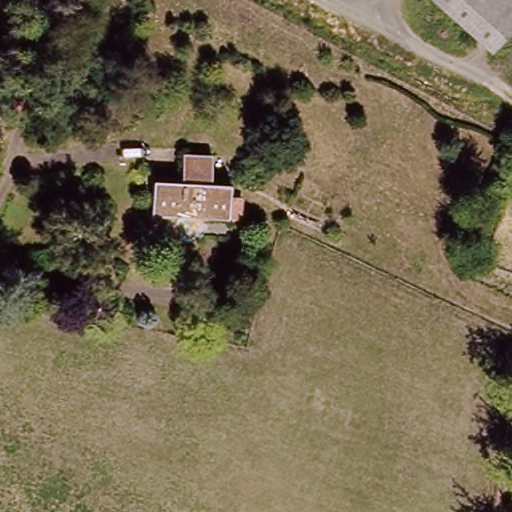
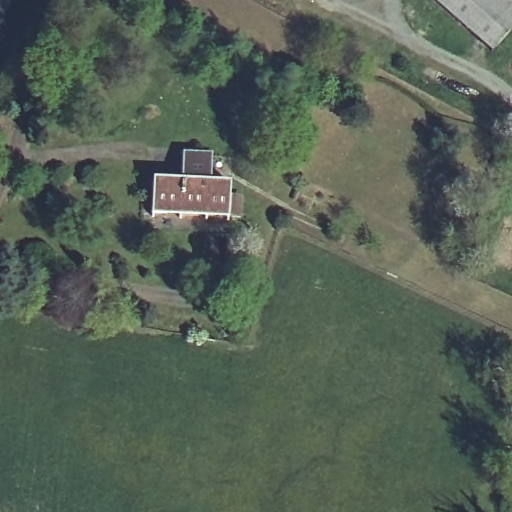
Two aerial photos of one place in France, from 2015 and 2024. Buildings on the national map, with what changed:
unchanged [(488,52),(430,0),(512,0),(512,25),(488,52)]
unchanged [(231,185),(229,219),(153,215),(155,182),(181,182),(182,153),(213,155),(212,184),(231,185)]

